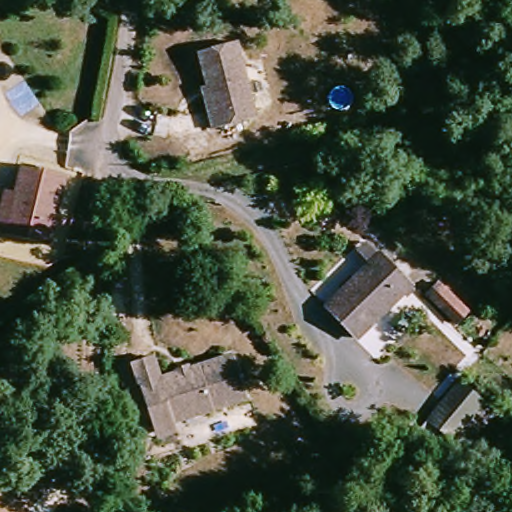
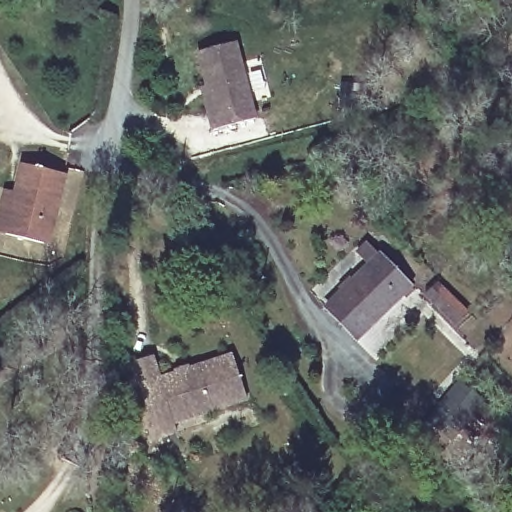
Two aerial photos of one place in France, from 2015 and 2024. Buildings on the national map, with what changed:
unchanged [(204,57),(240,44),(264,118),(222,132),(217,115),(209,90),(214,88),(204,57)]
unchanged [(74,178),(64,206),(58,204),(43,245),(6,232),(0,230),(0,221),(17,175),(26,178),(32,163),(74,178)]
unchanged [(327,313),(377,259),(408,287),(358,341),(327,313)]
unchanged [(455,312),(431,290),(441,279),(464,301),(455,312)]
unchanged [(155,411),(140,364),(158,358),(165,379),(185,372),(187,377),(194,375),(192,369),(239,353),(254,396),(181,422),(162,429),(155,411)]
unchanged [(414,434),(458,380),(495,414),(452,461),(414,434)]

